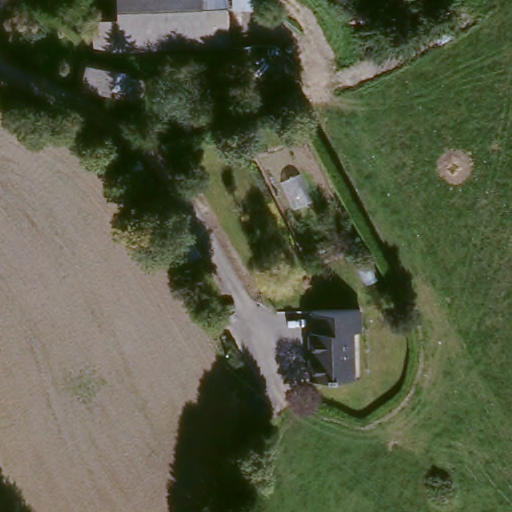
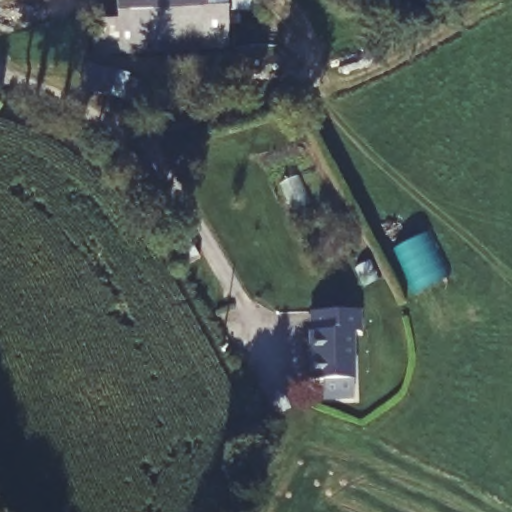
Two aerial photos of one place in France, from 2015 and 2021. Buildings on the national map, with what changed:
unchanged [(231,0),(231,45),(97,48),(96,1),(120,0),(231,0)]
unchanged [(148,69),(142,98),(85,87),(94,58),(148,69)]
unchanged [(315,327),(318,327),(319,308),(367,308),(367,326),(358,326),(358,373),(314,372),(315,327)]

